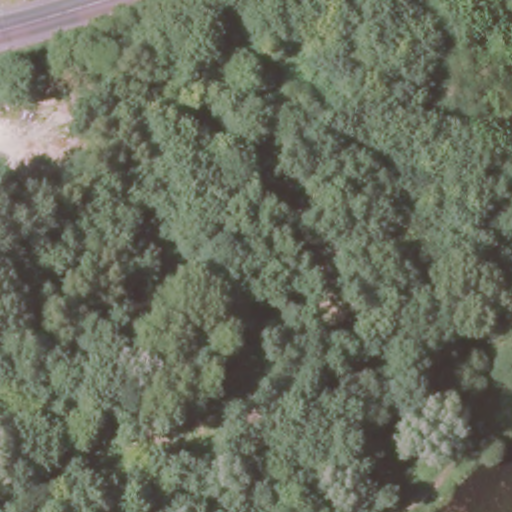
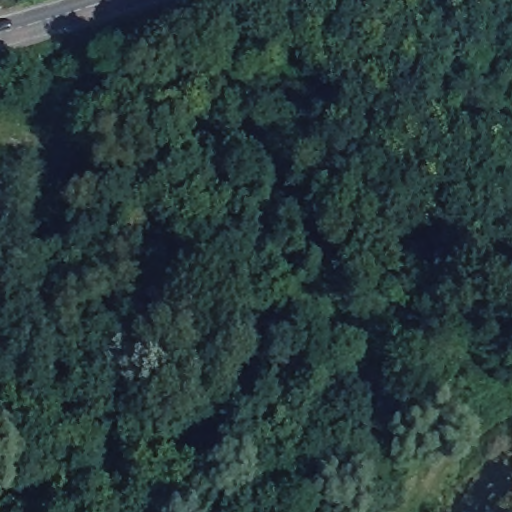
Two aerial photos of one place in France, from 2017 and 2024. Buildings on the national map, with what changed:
unchanged [(192,176),(199,178),(200,183),(198,187),(194,189),(188,188),(185,183),(186,179),(192,176)]
unchanged [(167,317),(178,320),(175,331),(165,328),(167,317)]

